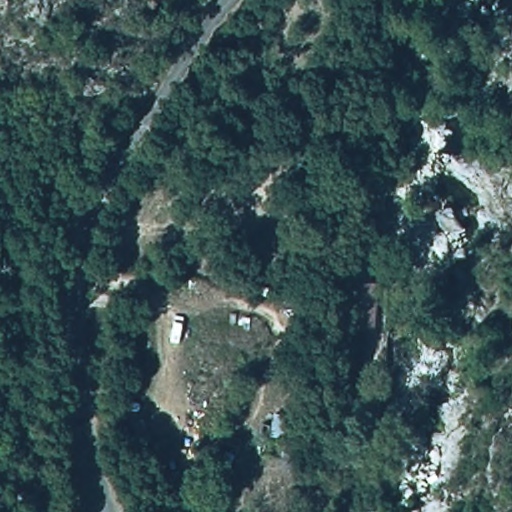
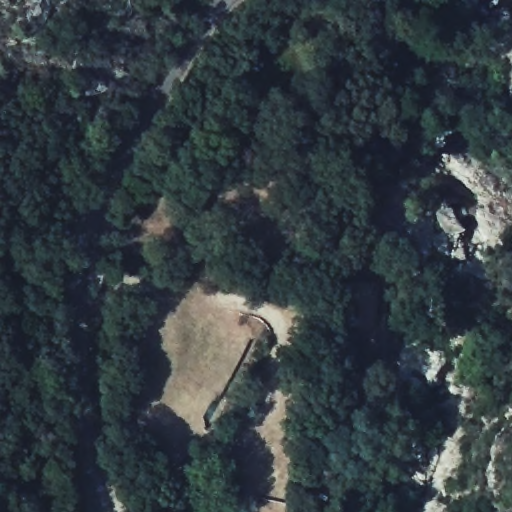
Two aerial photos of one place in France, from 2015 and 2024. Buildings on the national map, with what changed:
unchanged [(348,280),(380,282),(377,330),(342,327),(348,280)]

